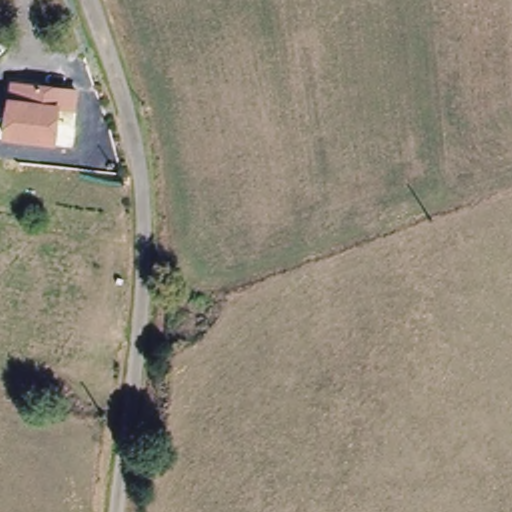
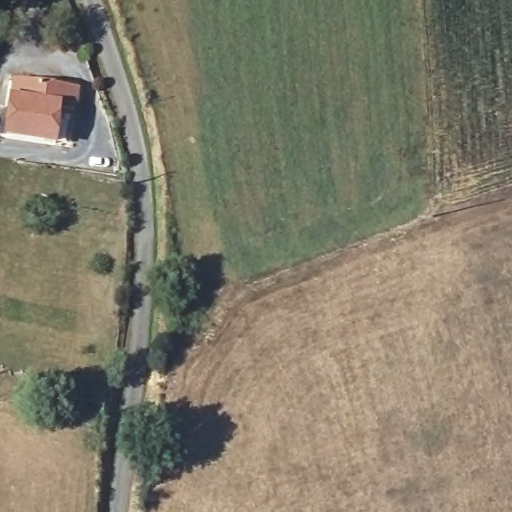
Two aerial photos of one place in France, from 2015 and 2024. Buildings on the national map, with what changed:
unchanged [(51,140),(14,134),(26,79),(74,88),(67,123),(63,141),(51,140)]

